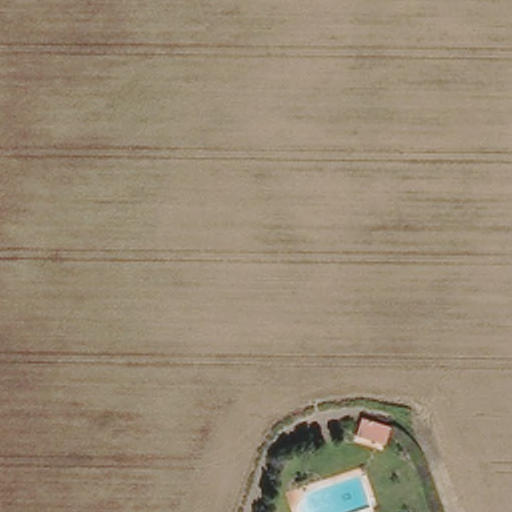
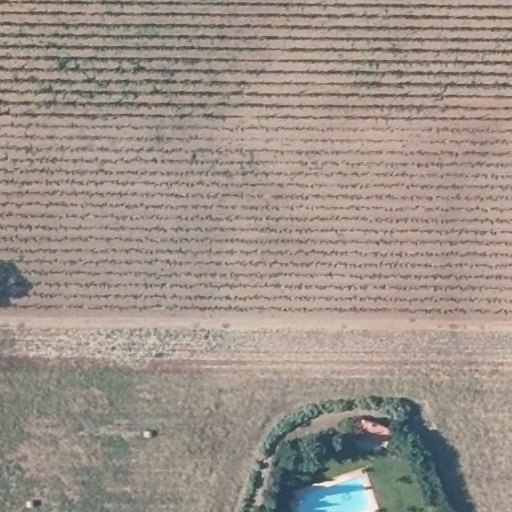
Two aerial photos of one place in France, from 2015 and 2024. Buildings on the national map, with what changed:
unchanged [(362,416),(397,425),(385,450),(353,438),(362,416)]

